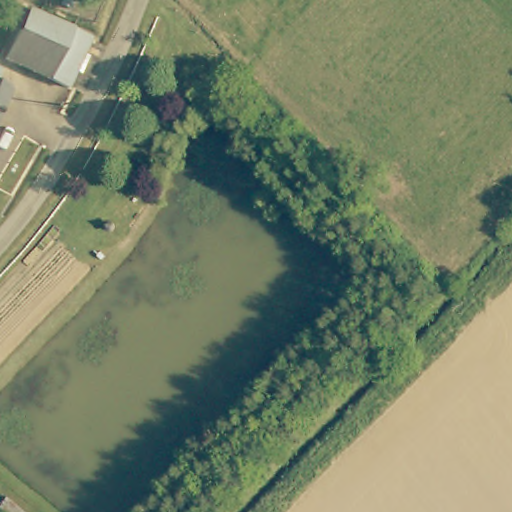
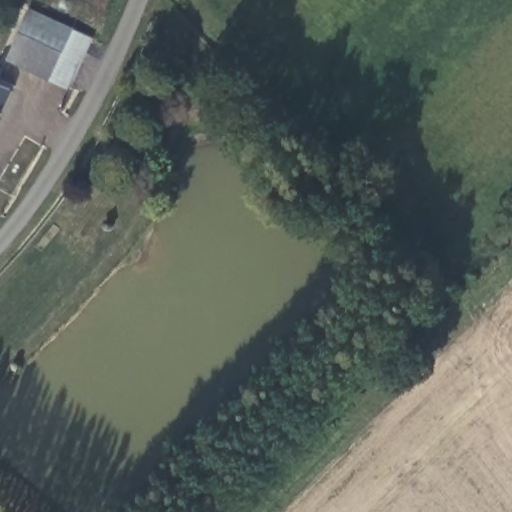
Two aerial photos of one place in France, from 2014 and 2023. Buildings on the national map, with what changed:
unchanged [(8,57),(29,7),(70,23),(49,75),(8,57)]
unchanged [(70,23),(94,32),(72,85),(49,75),(70,23)]
unchanged [(3,67),(0,74),(0,66),(3,67)]
unchanged [(10,88),(0,111),(0,83),(10,88)]

